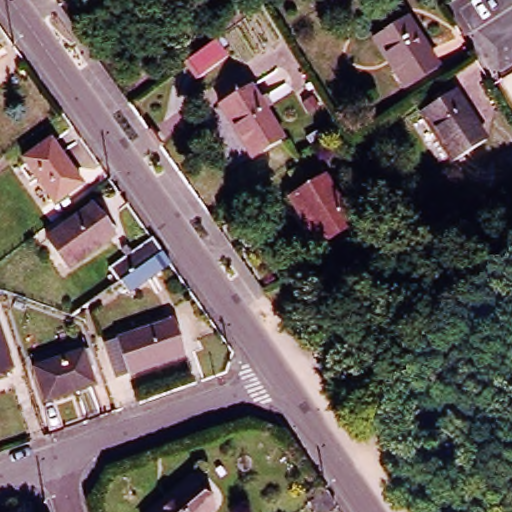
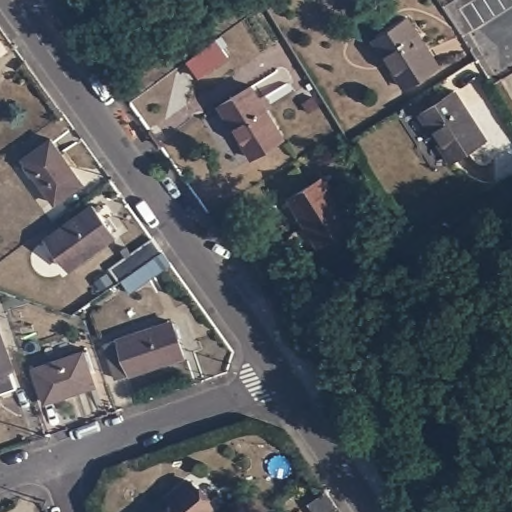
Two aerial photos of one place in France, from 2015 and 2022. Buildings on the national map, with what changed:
unchanged [(436,66),(402,87),(374,41),(407,20),(436,66)]
unchanged [(208,32),(219,47),(191,70),(179,55),(208,32)]
unchanged [(286,132),(254,152),(223,102),(254,82),(286,132)]
unchanged [(484,141),(450,162),(419,114),(453,92),(484,141)]
unchanged [(21,154),(48,134),(80,180),(53,199),(21,154)]
unchanged [(356,227),(321,250),(293,205),(327,182),(356,227)]
unchanged [(90,212),(111,241),(64,273),(44,246),(90,212)]
unchanged [(131,286),(123,274),(113,260),(154,231),(164,245),(173,256),(131,286)]
unchanged [(123,334),(173,317),(185,352),(134,368),(119,373),(108,339),(123,334)]
unchanged [(0,366),(0,332),(10,362),(0,366)]
unchanged [(80,348),(91,382),(41,399),(30,366),(80,348)]
unchanged [(208,512),(149,512),(188,478),(213,507),(208,512)]
unchanged [(321,493),(332,509),(328,512),(309,512),(304,506),(321,493)]

